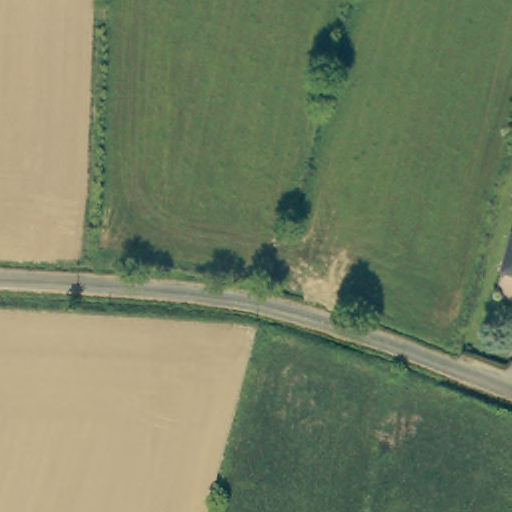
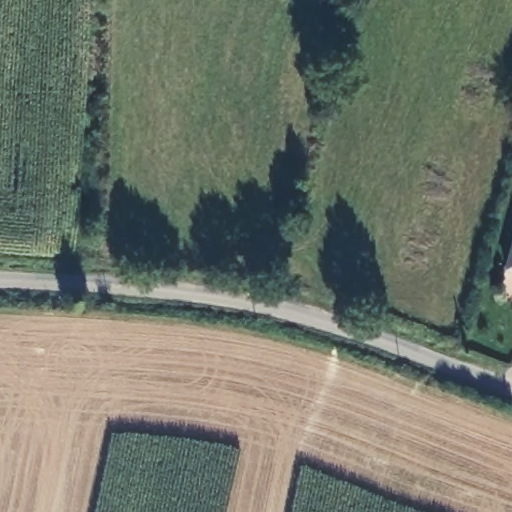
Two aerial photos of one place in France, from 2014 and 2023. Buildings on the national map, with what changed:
unchanged [(512,240),(512,268),(502,265),(512,240)]

